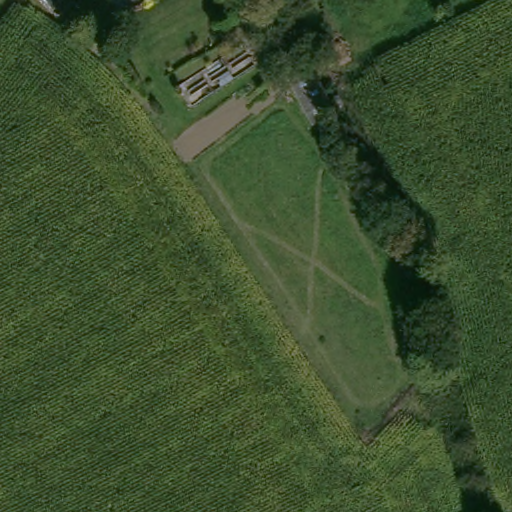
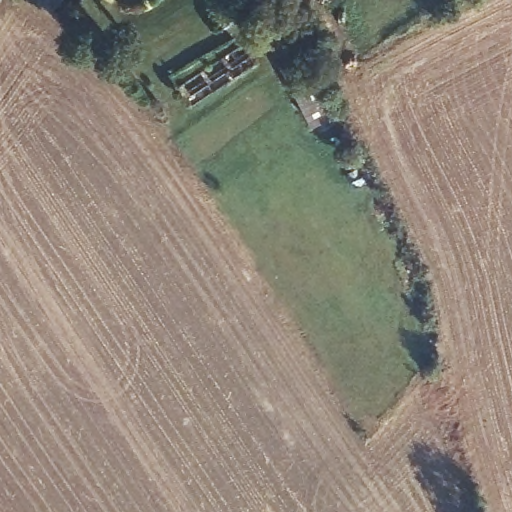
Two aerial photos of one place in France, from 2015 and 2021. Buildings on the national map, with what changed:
unchanged [(47,7),(42,11),(32,0),(54,0),(47,7)]

